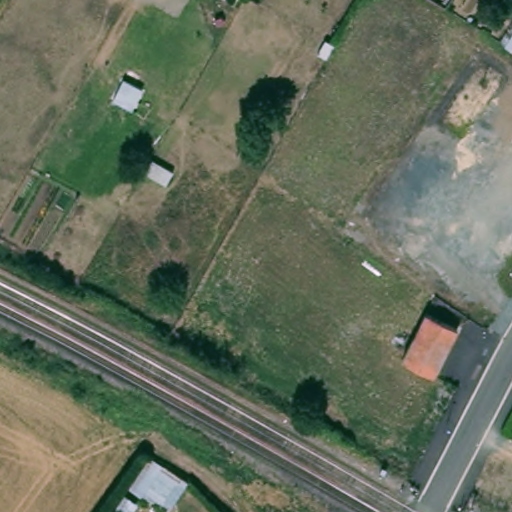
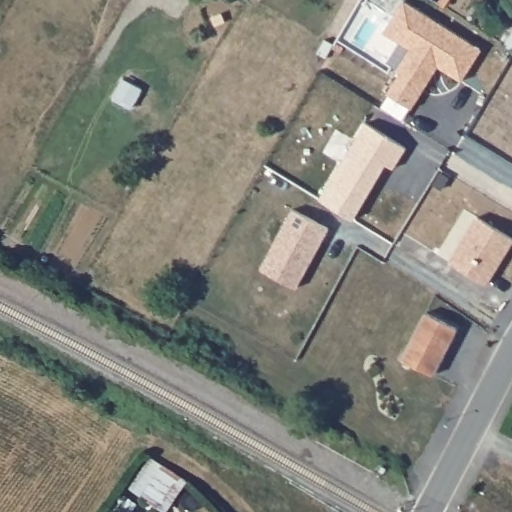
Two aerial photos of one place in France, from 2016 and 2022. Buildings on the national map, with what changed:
new [(481,47),(461,81),(438,67),(412,110),(386,94),(399,73),(395,71),(409,49),(384,32),(404,0),(481,47)]
unchanged [(323,64),(313,59),(321,45),(330,51),(323,64)]
new [(407,147),(393,170),(386,165),(352,221),(320,200),(367,122),(407,147)]
new [(329,227),(296,290),(260,270),(292,209),(329,227)]
new [(512,238),(512,242),(486,284),(450,262),(477,217),(512,238)]
unchanged [(457,333),(431,375),(403,357),(428,316),(457,333)]
unchanged [(165,512),(164,512),(131,492),(156,464),(190,482),(165,512)]

